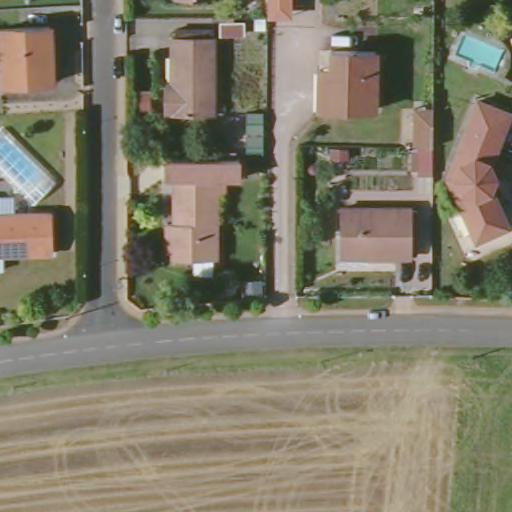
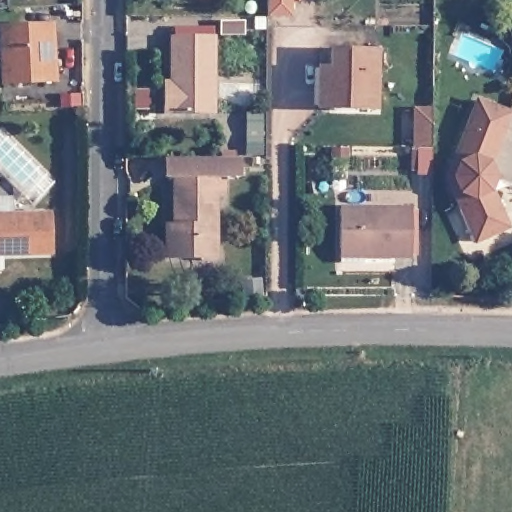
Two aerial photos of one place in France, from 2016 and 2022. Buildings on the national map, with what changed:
unchanged [(267,18),(268,0),(292,0),(292,17),(267,18)]
unchanged [(56,81),(7,82),(6,27),(55,26),(56,81)]
unchanged [(163,115),(162,84),(171,84),(172,37),(216,37),(216,114),(163,115)]
unchanged [(321,70),(335,69),(334,50),(378,50),(378,107),(335,108),(321,107),(321,70)]
unchanged [(475,236),(445,173),(473,94),(508,106),(486,161),(490,170),(485,178),(505,222),(475,236)]
unchanged [(413,171),(413,145),(409,145),(408,121),(408,105),(430,105),(430,121),(430,144),(427,144),(427,171),(413,171)]
unchanged [(167,259),(167,222),(173,222),(173,179),(226,179),(226,198),(218,198),(218,259),(167,259)]
unchanged [(0,262),(0,206),(52,206),(54,247),(3,248),(3,261),(0,262)]
unchanged [(343,263),(343,250),(343,208),(413,207),(413,255),(368,256),(367,263),(343,263)]

